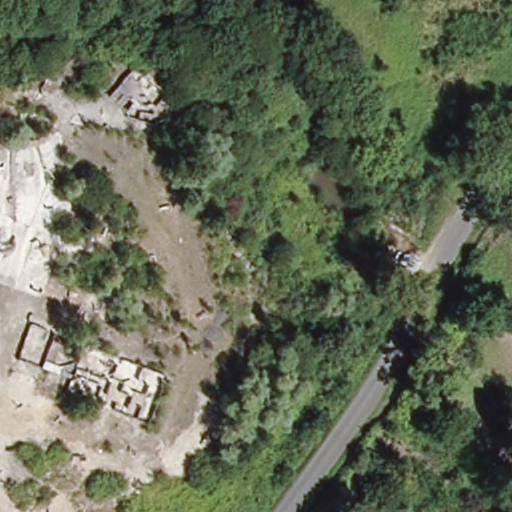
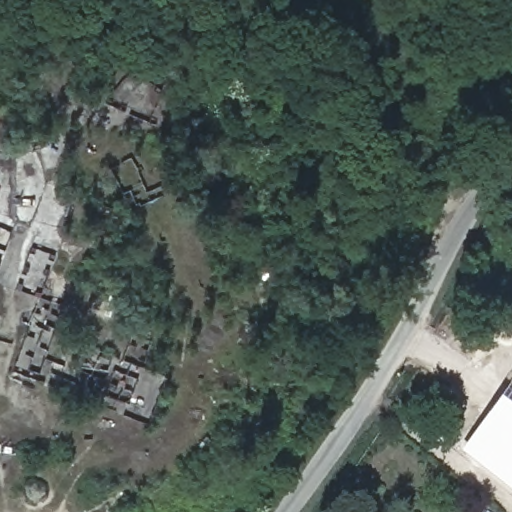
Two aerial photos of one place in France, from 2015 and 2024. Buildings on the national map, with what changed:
new [(458,452),(512,377),(512,494),(458,452)]

